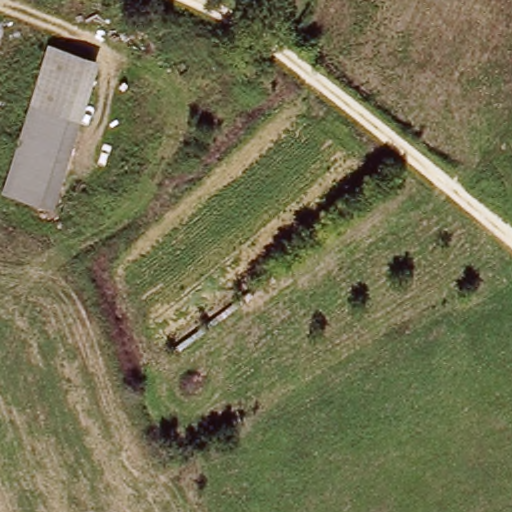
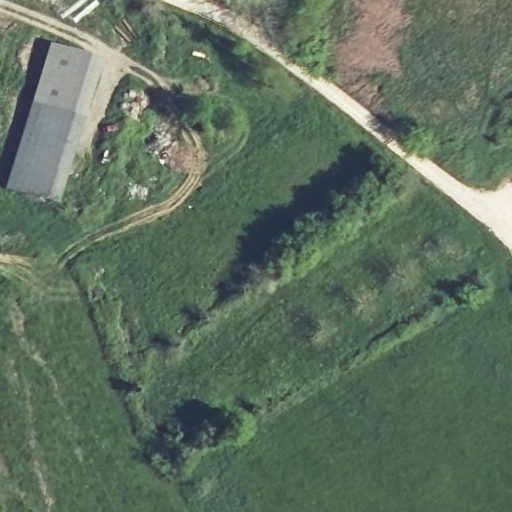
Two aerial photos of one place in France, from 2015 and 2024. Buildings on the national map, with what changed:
unchanged [(29,103),(47,45),(83,56),(94,60),(77,118),(65,115),(29,103)]
unchanged [(2,189),(29,103),(65,115),(37,200),(2,189)]
unchanged [(77,118),(59,173),(48,203),(37,200),(65,115),(77,118)]

